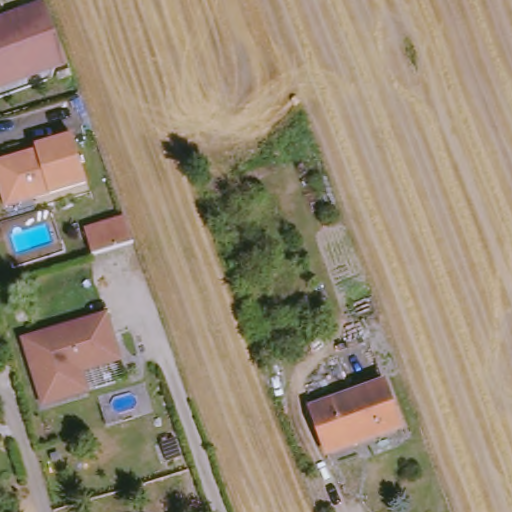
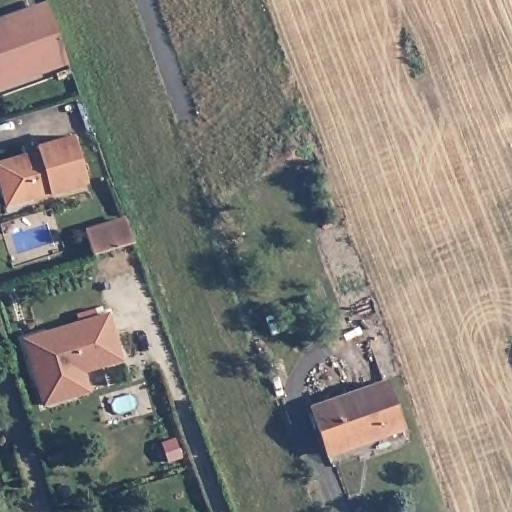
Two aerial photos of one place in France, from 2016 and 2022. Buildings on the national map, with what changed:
unchanged [(46,7),(67,62),(0,86),(0,23),(2,22),(46,7)]
unchanged [(0,190),(0,161),(25,154),(37,151),(35,146),(72,135),(85,182),(32,197),(5,206),(2,197),(0,190)]
unchanged [(84,231),(89,230),(124,219),(132,242),(97,253),(91,255),(84,231)]
unchanged [(28,339),(112,315),(125,360),(82,372),(88,392),(47,403),(28,339)]
unchanged [(313,408),(386,382),(402,428),(330,453),(313,408)]

